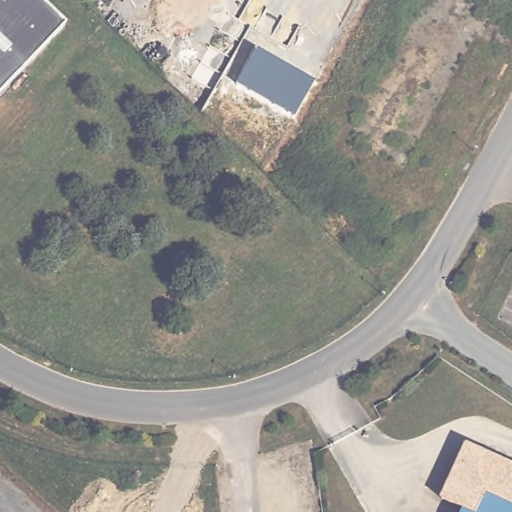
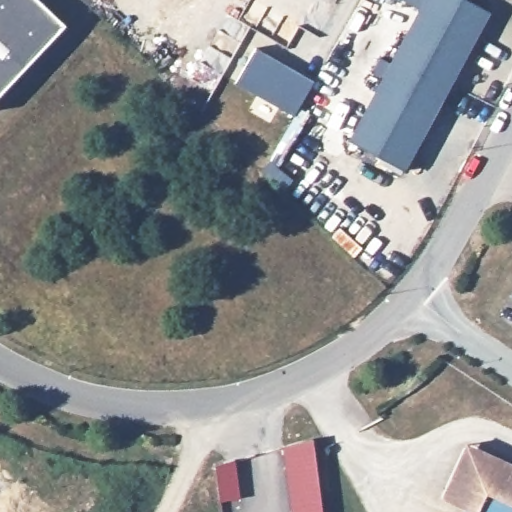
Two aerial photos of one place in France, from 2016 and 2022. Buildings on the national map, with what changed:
unchanged [(66,24),(0,92),(0,0),(41,0),(53,11),(66,24)]
new [(400,0),(469,0),(490,12),(405,170),(347,141),(419,9),(400,0)]
unchanged [(237,82),(256,48),(314,80),(295,115),(237,82)]
unchanged [(442,501),(467,447),(512,468),(512,512),(465,512),(442,501)]

